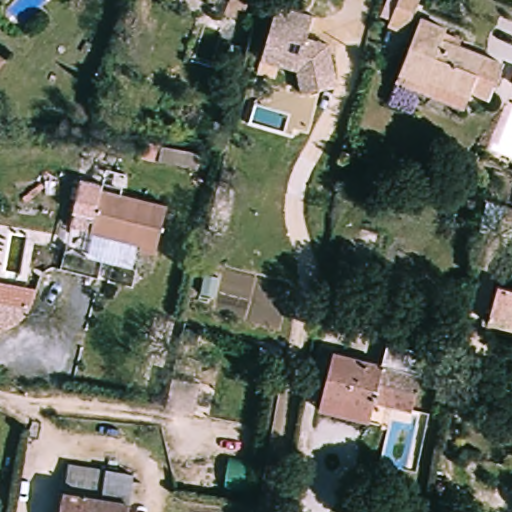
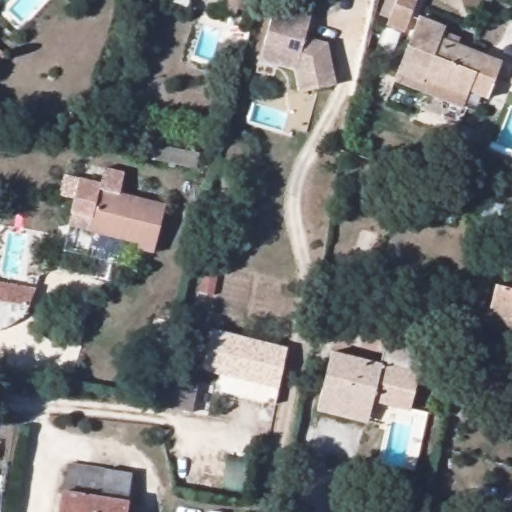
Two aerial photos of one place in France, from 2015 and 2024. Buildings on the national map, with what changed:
unchanged [(212,3),(206,0),(214,0),(212,3)]
unchanged [(235,1),(239,3),(229,25),(217,20),(227,0),(236,0),(235,1)]
unchanged [(384,27),(387,19),(379,15),(385,0),(417,0),(402,35),(384,27)]
unchanged [(266,43),(278,5),(314,16),(307,39),(320,43),(328,46),(329,58),(331,88),(300,94),(297,70),(277,63),(261,58),(266,43)]
unchanged [(437,37),(481,53),(465,89),(423,73),(421,80),(395,69),(417,16),(442,25),(437,37)]
unchanged [(457,107),(390,82),(395,69),(421,80),(423,73),(465,89),(457,107)]
unchanged [(507,87),(512,78),(512,89),(507,87)]
unchanged [(202,150),(200,169),(157,166),(160,146),(202,150)]
unchanged [(162,203),(150,249),(135,246),(137,238),(87,228),(97,188),(162,203)]
unchanged [(494,324),(475,317),(480,301),(490,276),(507,281),(512,283),(512,330),(494,324)]
unchanged [(28,310),(27,312),(27,313),(26,314),(25,314),(25,315),(24,315),(22,318),(20,320),(19,320),(18,321),(16,322),(15,323),(13,324),(8,327),(8,328),(7,328),(5,329),(2,330),(0,331),(0,301),(30,305),(28,310)]
new [(277,389),(202,370),(212,328),(288,347),(277,389)]
unchanged [(322,396),(331,350),(382,359),(387,343),(421,349),(417,364),(410,400),(395,398),(387,397),(372,394),(370,404),(366,416),(319,410),(322,396)]
new [(192,414),(168,407),(176,378),(200,385),(192,414)]
unchanged [(67,462),(131,473),(128,500),(126,512),(58,512),(60,493),(67,462)]

